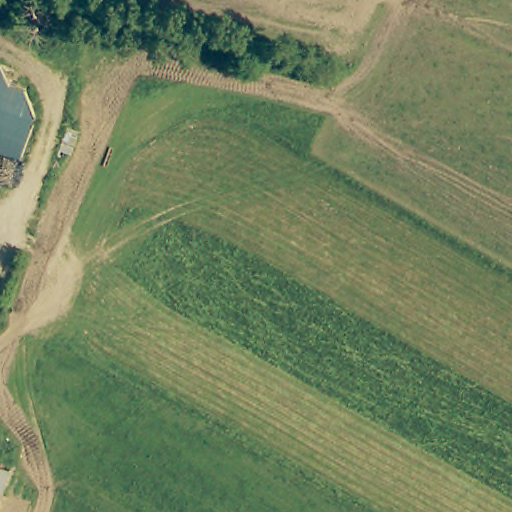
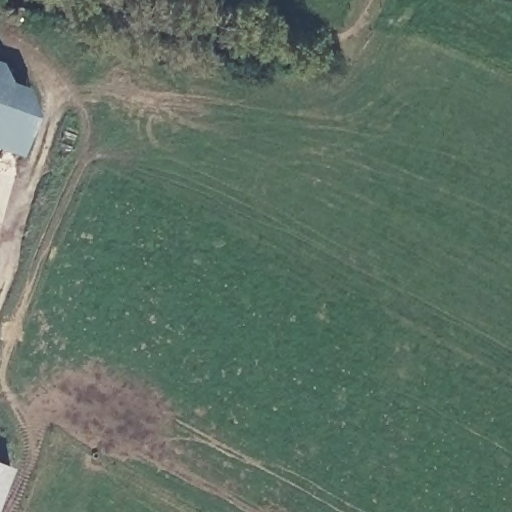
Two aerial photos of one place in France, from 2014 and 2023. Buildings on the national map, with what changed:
unchanged [(34,82),(12,146),(0,142),(0,70),(34,82)]
unchanged [(0,512),(0,461),(17,467),(0,512)]

